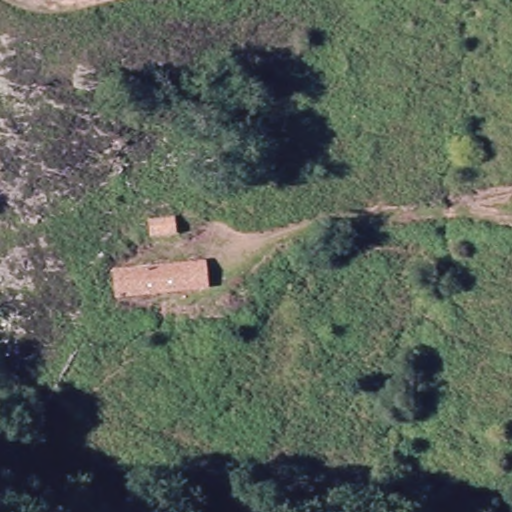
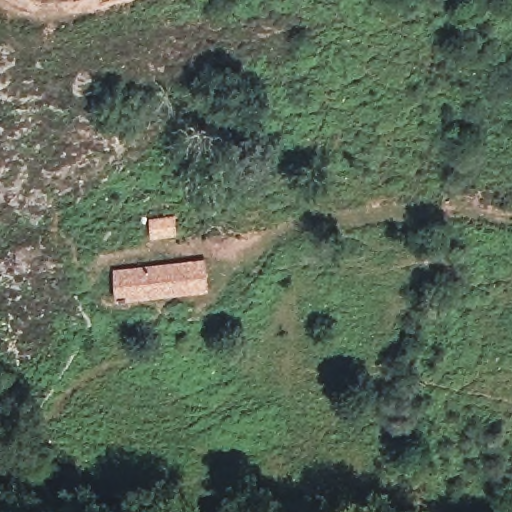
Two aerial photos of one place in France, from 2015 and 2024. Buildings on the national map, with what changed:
unchanged [(150,223),(173,220),(173,237),(152,240),(150,223)]
unchanged [(116,268),(192,262),(194,291),(117,300),(116,268)]

